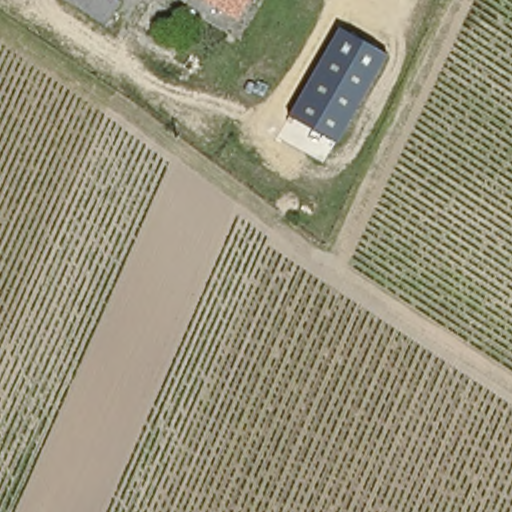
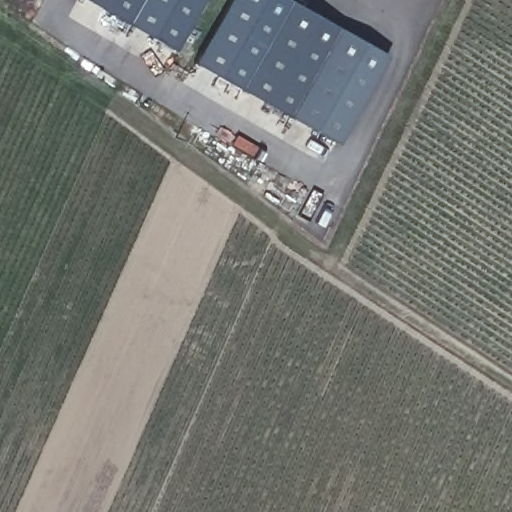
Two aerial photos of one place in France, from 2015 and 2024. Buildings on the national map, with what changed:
demolished [(70,0),(116,0),(101,22),(70,0)]
new [(86,0),(206,0),(176,52),(86,0)]
new [(288,115),(200,64),(236,0),(289,0),(338,27),(332,38),(288,115)]
demolished [(202,6),(206,0),(217,0),(211,11),(202,6)]
demolished [(217,0),(244,0),(237,11),(217,0)]
unchanged [(336,142),(288,115),(338,27),(387,54),(336,142)]

